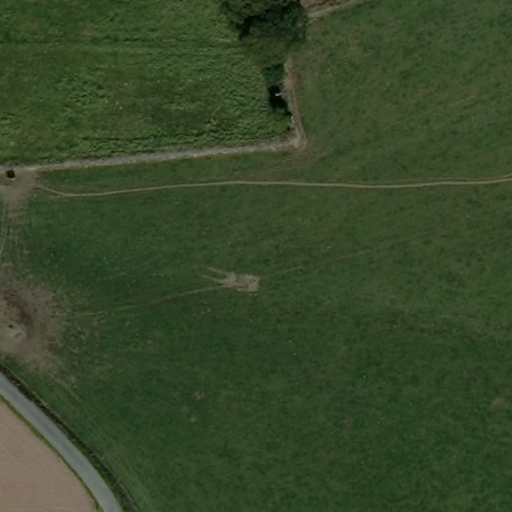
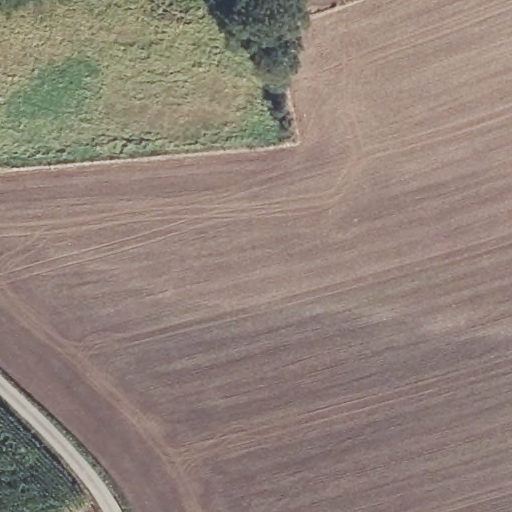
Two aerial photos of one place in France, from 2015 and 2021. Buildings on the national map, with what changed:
[]

